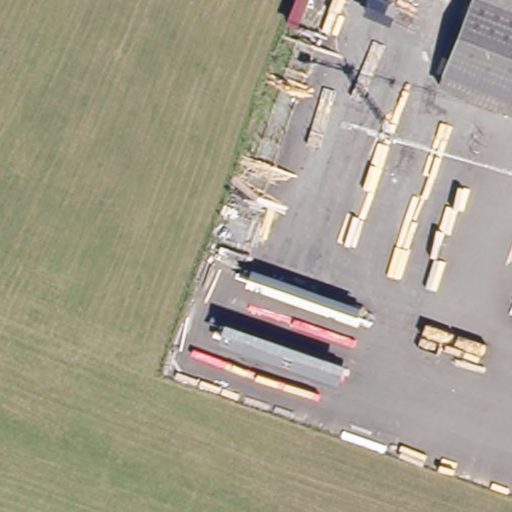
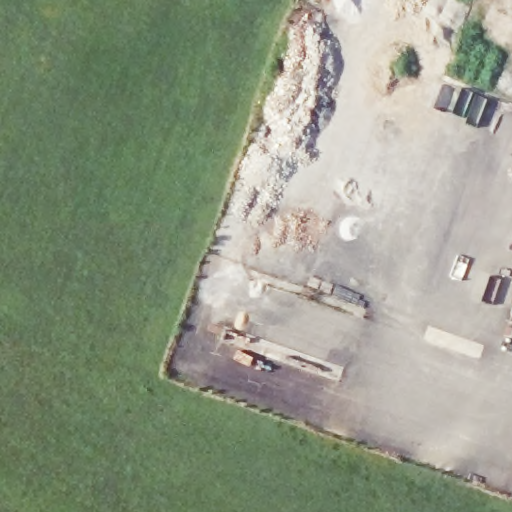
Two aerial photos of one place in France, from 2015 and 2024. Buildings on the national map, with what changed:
demolished [(507,100),(500,112),(438,86),(469,0),(476,0),(512,13),(512,102),(507,100)]
demolished [(476,0),(512,0),(512,13),(476,0)]

